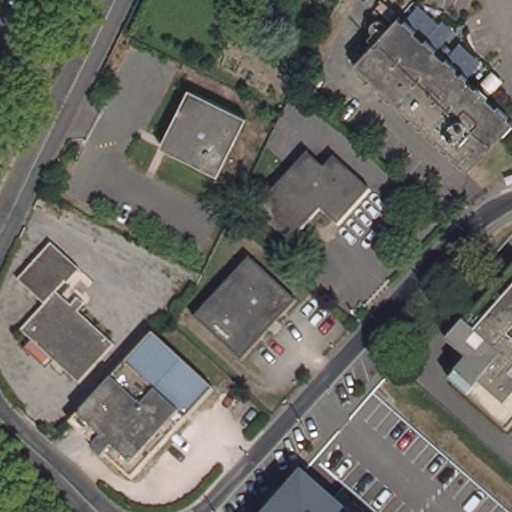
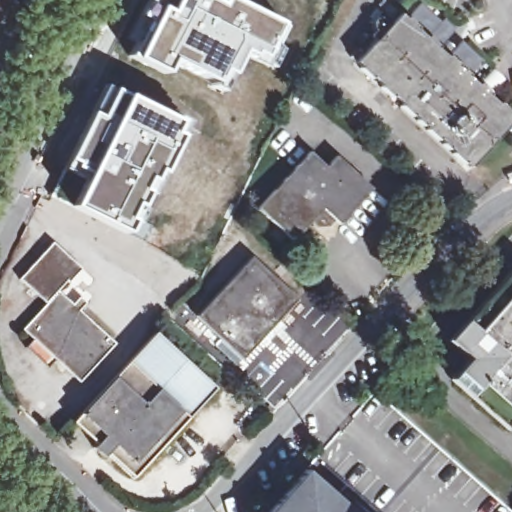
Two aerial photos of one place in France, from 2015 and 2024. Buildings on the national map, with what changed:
new [(144,1),(145,0),(240,0),(287,25),(271,71),(240,57),(226,78),(222,76),(217,85),(170,62),(163,74),(129,57),(155,6),(144,1)]
unchanged [(384,0),(397,12),(390,20),(385,16),(387,14),(378,6),(383,0),(384,0)]
unchanged [(406,20),(407,19),(418,28),(417,30),(426,39),(427,37),(439,48),(438,50),(446,57),(448,56),(459,66),(457,67),(462,72),(464,71),(470,76),(468,77),(478,87),(479,85),(490,95),(489,97),(497,104),(499,102),(511,114),(509,116),(512,119),(512,122),(471,167),(466,163),(464,165),(453,156),(455,154),(450,149),(449,151),(443,146),(445,144),(439,139),(438,141),(428,132),(430,130),(424,125),(422,126),(417,122),(419,120),(413,115),(411,116),(401,107),(403,105),(393,95),(391,97),(381,89),(383,86),(374,77),(371,80),(360,70),(363,67),(357,62),(400,15),(406,20)]
new [(91,110),(107,84),(126,92),(69,206),(49,196),(91,110)]
demolished [(189,86),(246,115),(217,172),(161,143),(189,86)]
new [(126,92),(190,122),(155,182),(129,236),(69,206),(126,92)]
unchanged [(310,152),(327,168),(337,157),(372,190),(340,224),(323,208),(293,241),(259,209),(310,152)]
unchanged [(57,361),(50,368),(27,347),(35,340),(24,330),(47,304),(21,280),(54,243),(56,246),(59,248),(82,269),(70,283),(69,282),(68,282),(59,292),(73,305),(80,297),(87,302),(79,311),(116,344),(81,382),(57,361)]
unchanged [(249,256),(295,297),(242,356),(195,316),(249,256)]
unchanged [(452,380),(471,360),(450,341),(512,270),(512,426),(509,430),(452,380)]
unchanged [(154,332),(215,387),(135,477),(108,452),(105,457),(94,447),(97,443),(74,422),(154,332)]
unchanged [(332,446),(380,391),(384,387),(395,397),(392,401),(437,440),(512,507),(512,512),(274,512),(332,446)]

